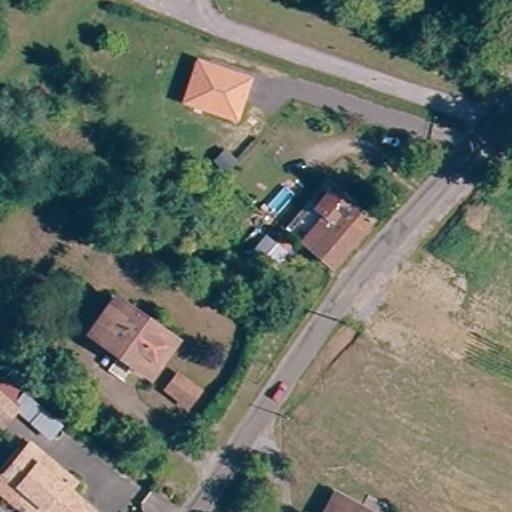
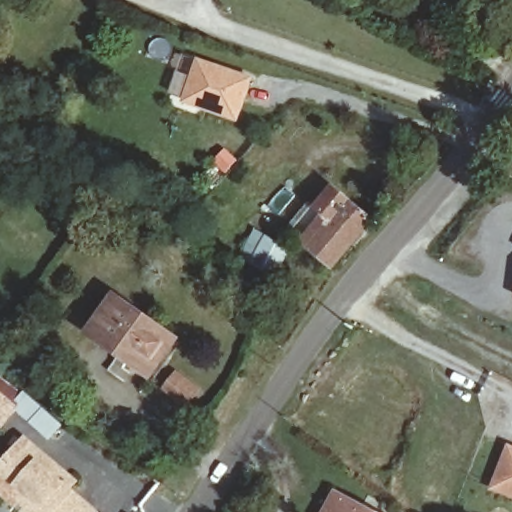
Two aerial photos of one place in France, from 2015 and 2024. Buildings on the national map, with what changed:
unchanged [(197,58),(255,77),(239,122),(182,104),(197,58)]
unchanged [(344,272),(310,244),(348,199),(382,226),(344,272)]
unchanged [(179,342),(154,373),(125,350),(121,355),(94,333),(122,297),(179,342)]
unchanged [(192,403),(170,386),(182,371),(204,388),(192,403)]
unchanged [(0,373),(64,426),(51,441),(16,413),(3,428),(0,426),(0,373)]
new [(509,445),(512,447),(512,499),(491,491),(509,445)]
unchanged [(0,490),(0,482),(14,464),(29,476),(35,468),(65,493),(59,500),(73,512),(12,512),(11,499),(0,490)]
unchanged [(366,512),(325,512),(333,495),(366,512)]

